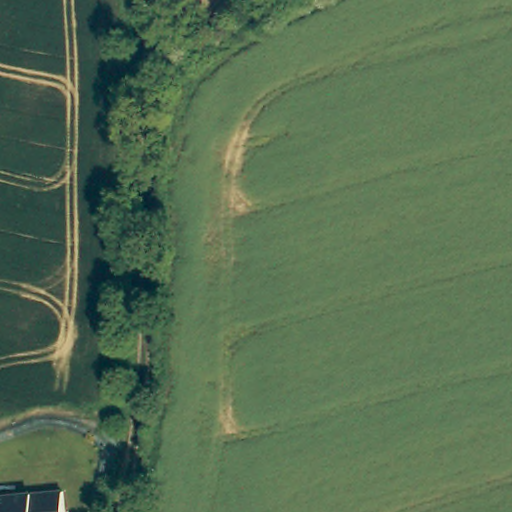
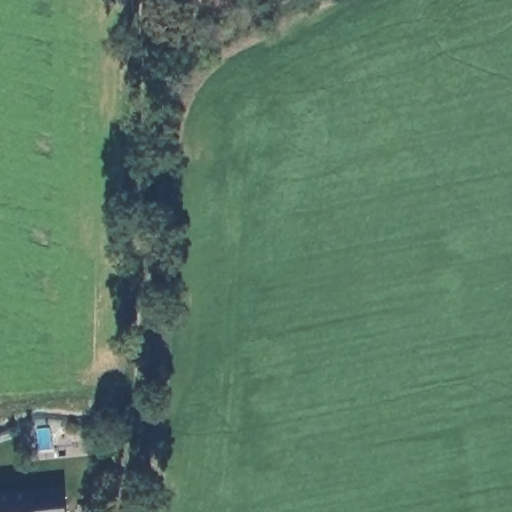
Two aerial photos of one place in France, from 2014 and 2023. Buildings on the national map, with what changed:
unchanged [(0,504),(35,500),(35,502),(66,498),(68,512),(0,512),(0,504)]

